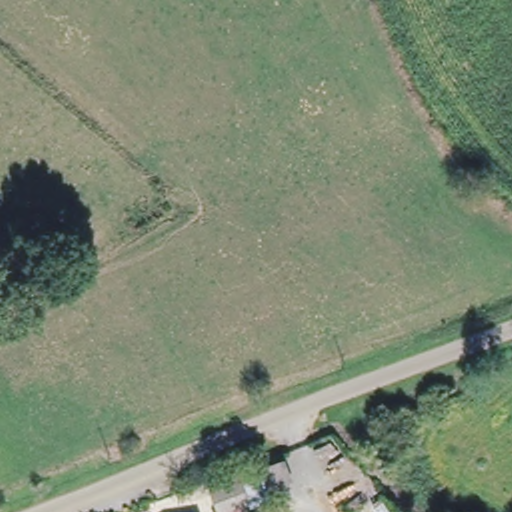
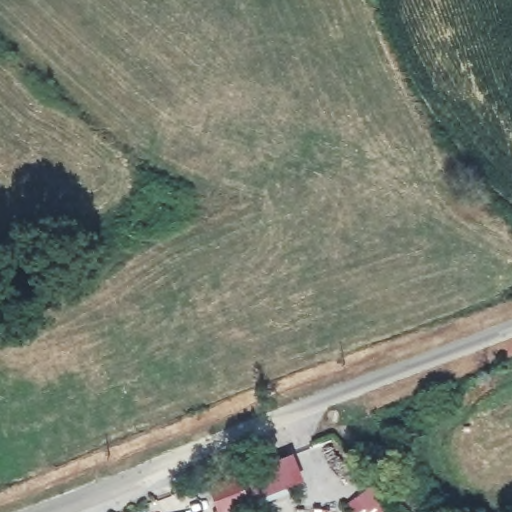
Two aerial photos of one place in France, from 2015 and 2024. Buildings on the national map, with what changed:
unchanged [(245,480),(256,505),(238,512),(230,512),(220,489),(245,480)]

